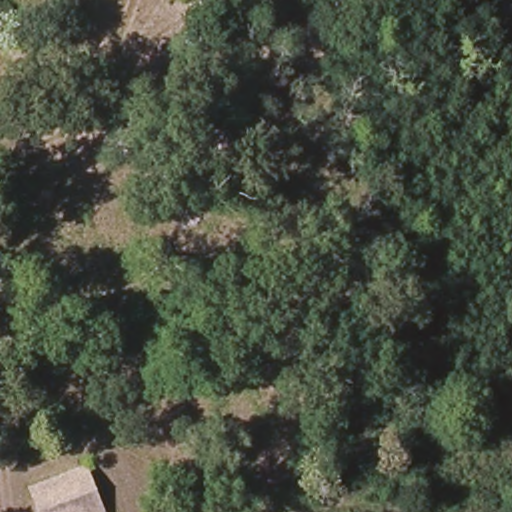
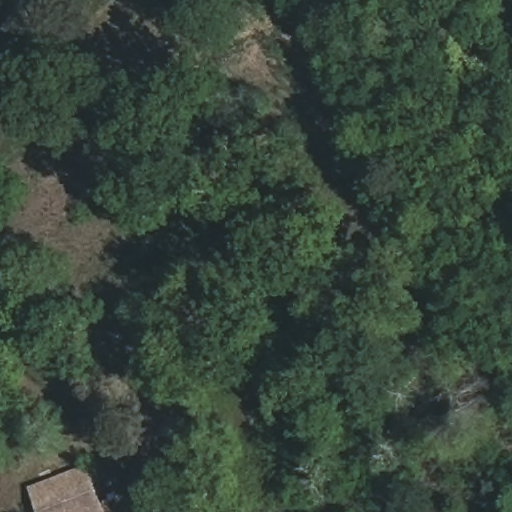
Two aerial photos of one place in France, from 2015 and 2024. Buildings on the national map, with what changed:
unchanged [(93,512),(41,512),(31,489),(75,469),(93,512)]

